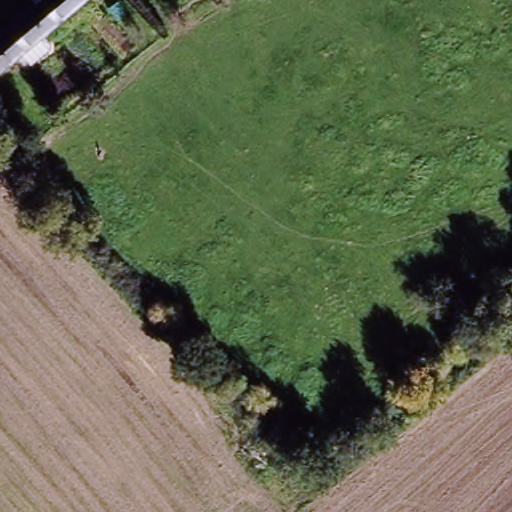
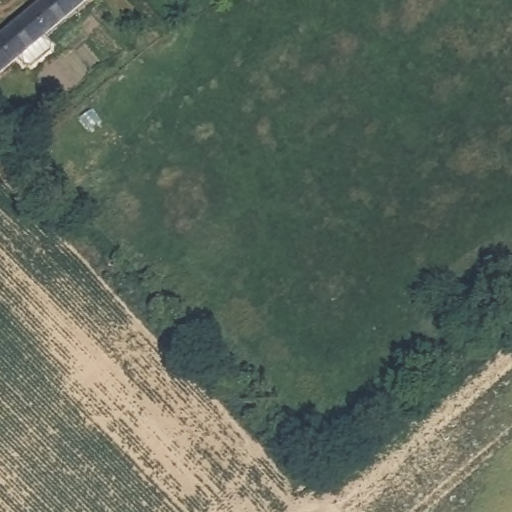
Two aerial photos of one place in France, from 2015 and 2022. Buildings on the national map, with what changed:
unchanged [(29,69),(22,70),(15,60),(0,73),(0,32),(38,0),(84,0),(40,38),(48,46),(49,54),(29,69)]

